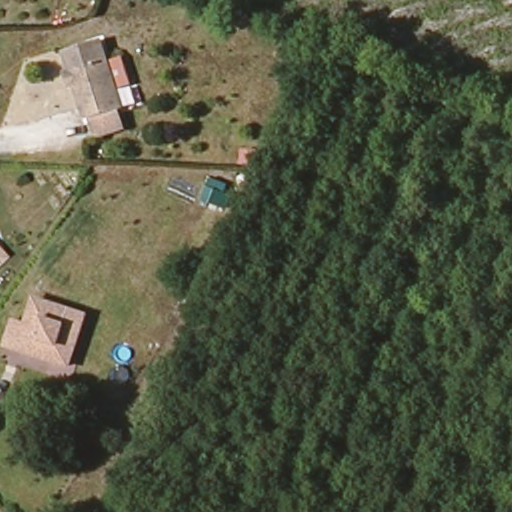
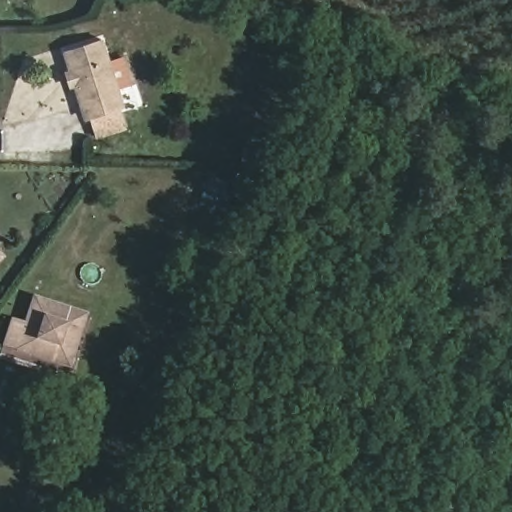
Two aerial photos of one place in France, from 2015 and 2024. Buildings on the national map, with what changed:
unchanged [(92,139),(88,124),(84,108),(77,109),(62,51),(99,43),(104,65),(123,61),(130,87),(111,93),(117,117),(121,132),(92,139)]
unchanged [(0,254),(2,256),(0,258),(0,254)]
unchanged [(68,365),(7,344),(15,321),(26,325),(35,299),(85,316),(68,365)]

